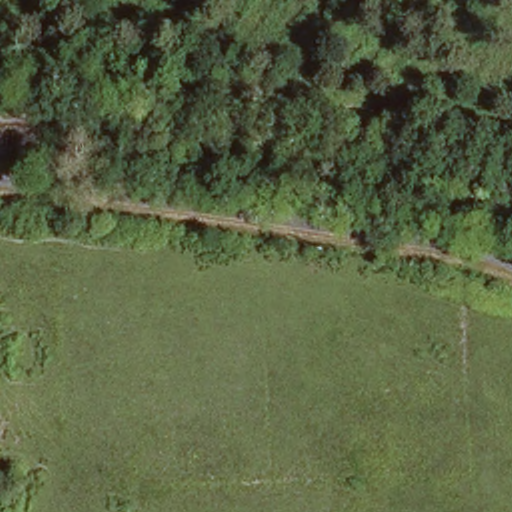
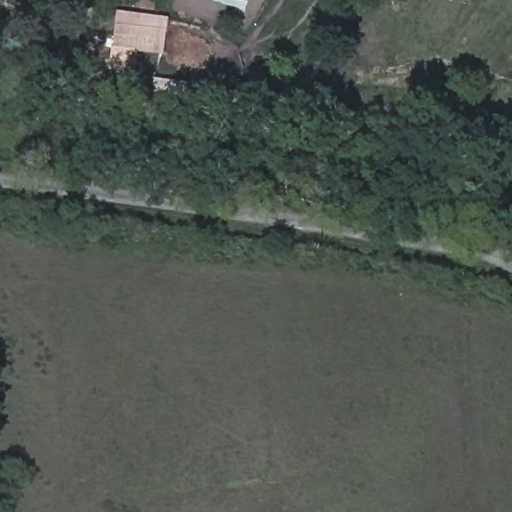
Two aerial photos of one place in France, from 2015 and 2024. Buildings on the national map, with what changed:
new [(165,55),(138,52),(135,70),(111,67),(118,11),(170,17),(165,55)]

